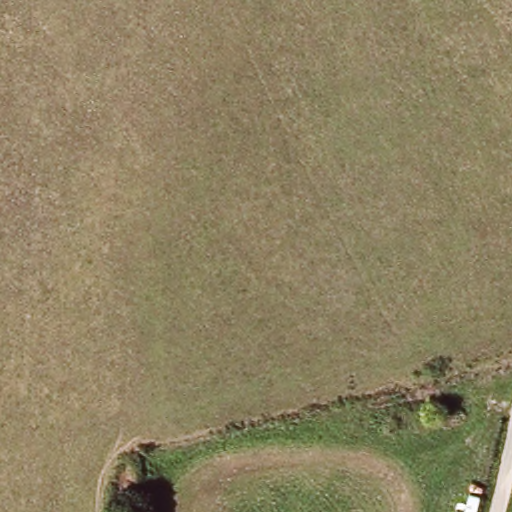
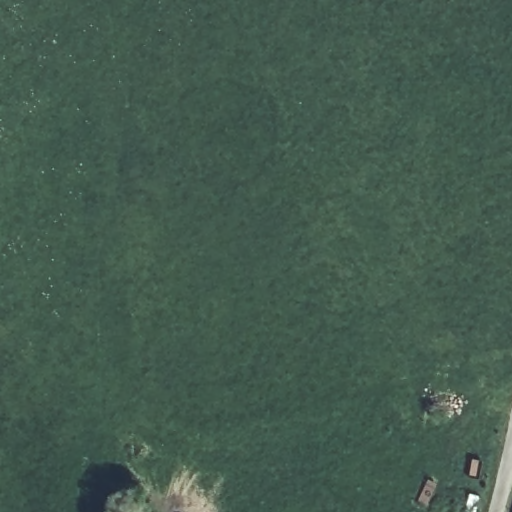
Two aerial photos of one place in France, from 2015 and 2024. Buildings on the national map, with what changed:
[]

